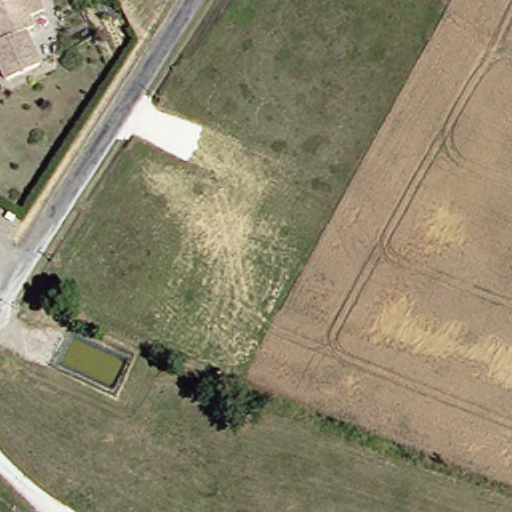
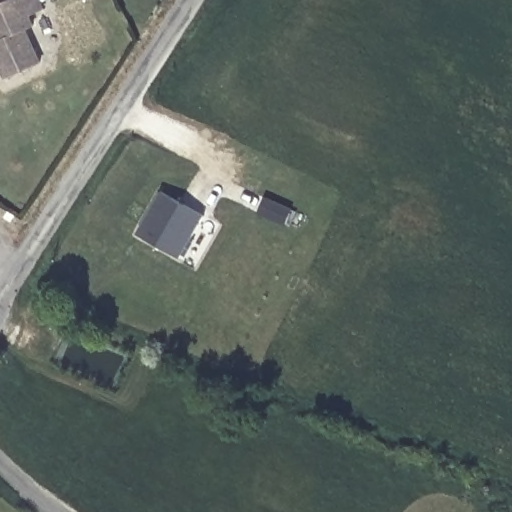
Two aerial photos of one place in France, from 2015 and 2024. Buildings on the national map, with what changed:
unchanged [(5,0),(37,0),(41,10),(26,16),(30,26),(22,31),(36,64),(5,80),(0,71),(0,3),(5,0)]
new [(179,260),(137,237),(161,192),(204,215),(179,260)]
new [(290,207),(284,221),(258,210),(265,196),(290,207)]

